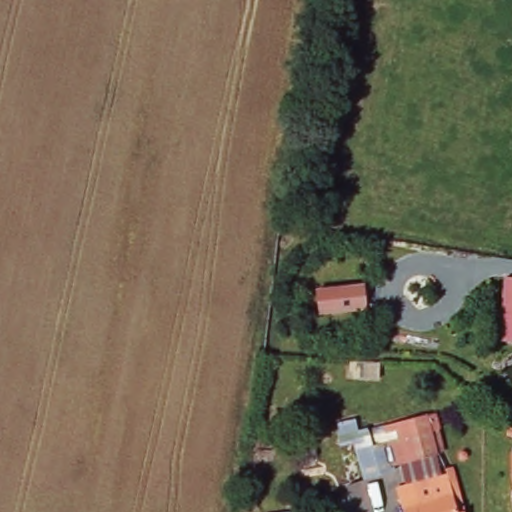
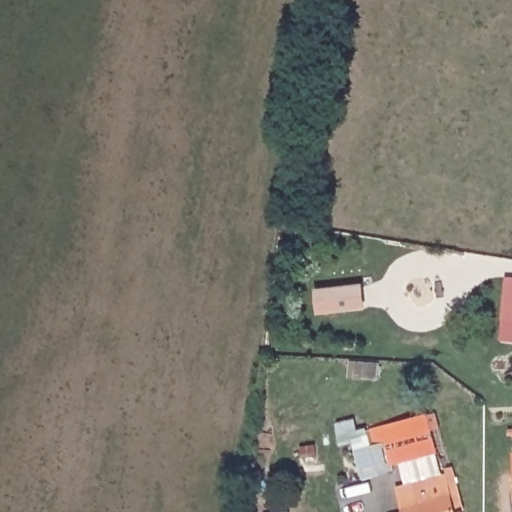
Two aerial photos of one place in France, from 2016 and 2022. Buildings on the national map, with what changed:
unchanged [(507,279),(512,280),(512,341),(498,339),(507,279)]
unchanged [(314,289),(363,284),(366,310),(317,316),(314,289)]
unchanged [(443,407),(454,448),(446,450),(403,461),(404,467),(373,475),(365,446),(347,451),(343,433),(435,409),(443,407)]
unchanged [(397,484),(449,472),(456,475),(465,512),(404,512),(397,484)]

